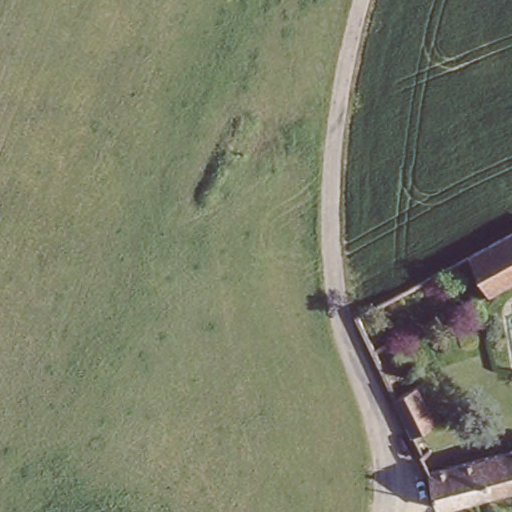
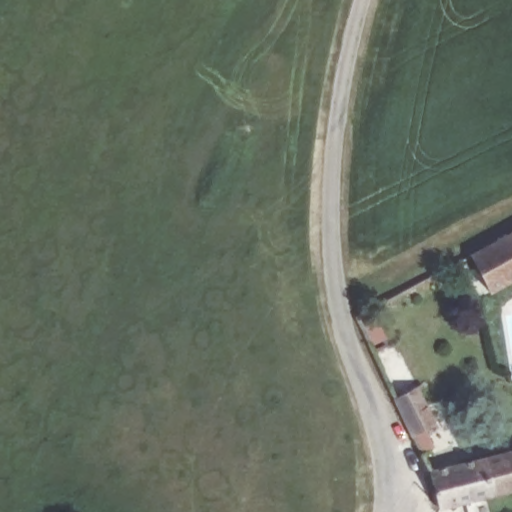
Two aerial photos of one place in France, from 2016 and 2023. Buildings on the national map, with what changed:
unchanged [(512,280),(490,291),(469,256),(512,233),(512,280)]
unchanged [(419,388),(436,424),(414,435),(397,398),(419,388)]
unchanged [(442,507),(432,470),(512,451),(512,490),(479,498),(482,512),(443,512),(442,507)]

